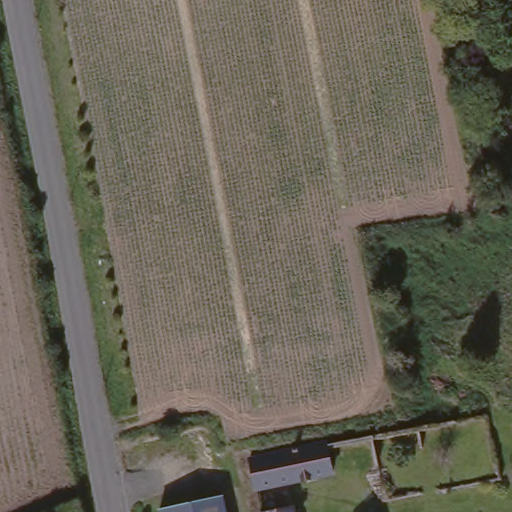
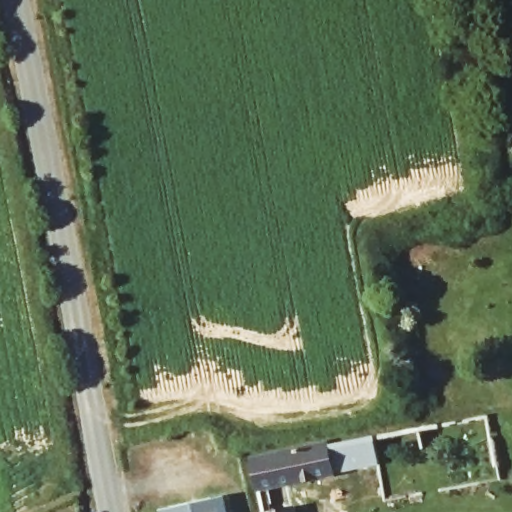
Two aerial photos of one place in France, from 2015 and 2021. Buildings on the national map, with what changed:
unchanged [(253,494),(247,459),(329,447),(333,481),(253,494)]
unchanged [(157,510),(223,496),(226,512),(157,512),(157,510)]
unchanged [(292,507),(294,512),(268,512),(292,507)]

